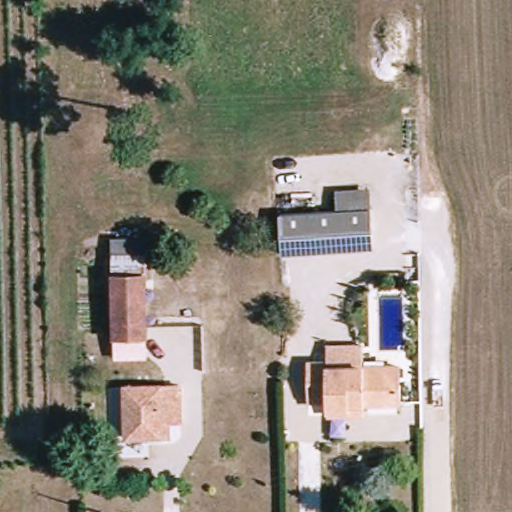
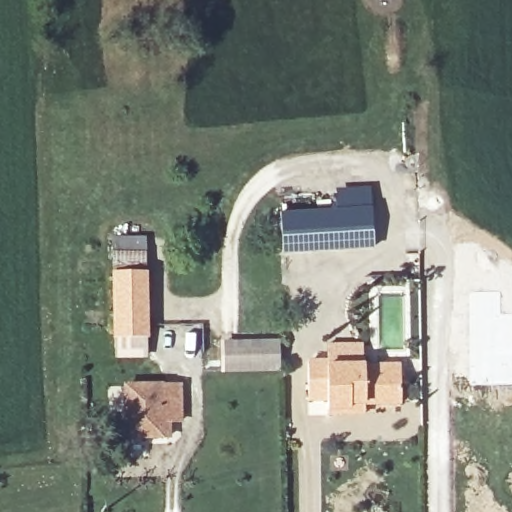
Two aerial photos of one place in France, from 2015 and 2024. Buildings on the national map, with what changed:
unchanged [(276,216),(369,206),(372,245),(280,255),(276,216)]
unchanged [(145,339),(107,340),(107,303),(106,240),(143,240),(145,339)]
new [(220,342),(280,340),(280,372),(220,374),(220,342)]
unchanged [(395,360),(397,399),(345,399),(345,414),(325,414),(325,395),(303,395),(302,357),(323,358),(323,364),(395,360)]
unchanged [(127,436),(126,408),(124,408),(123,388),(141,386),(177,381),(177,407),(181,407),(181,416),(169,417),(167,421),(167,433),(144,434),(144,437),(127,436)]

